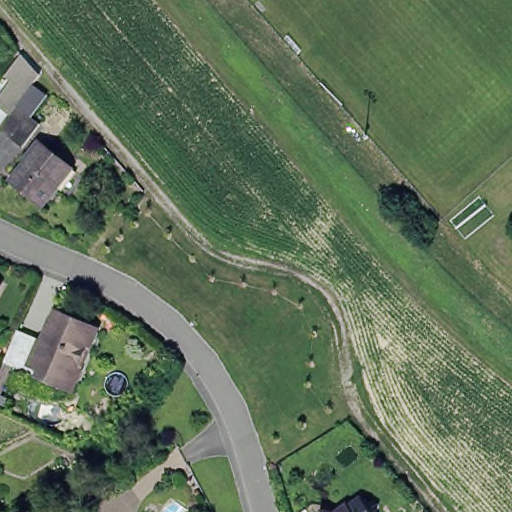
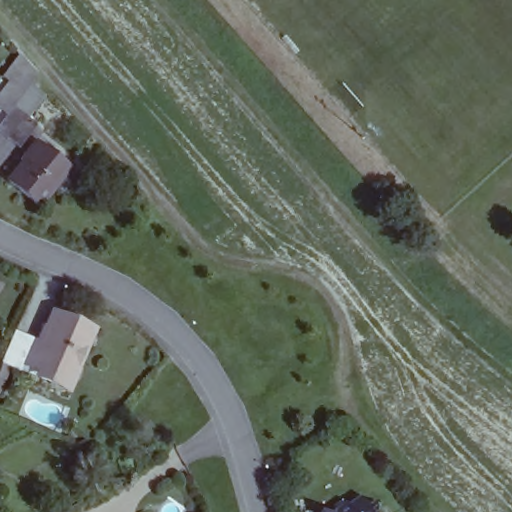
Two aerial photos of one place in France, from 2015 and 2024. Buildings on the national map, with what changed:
unchanged [(0,92),(11,78),(25,89),(10,109),(34,128),(14,150),(0,139),(0,122),(4,117),(0,114),(0,92)]
unchanged [(40,146),(68,170),(38,207),(9,183),(40,146)]
unchanged [(15,333),(40,343),(54,315),(92,331),(70,383),(55,387),(2,365),(15,333)]
unchanged [(66,500),(73,512),(50,512),(66,500)]
unchanged [(343,511),(357,500),(361,506),(375,507),(375,512),(341,512),(343,511)]

